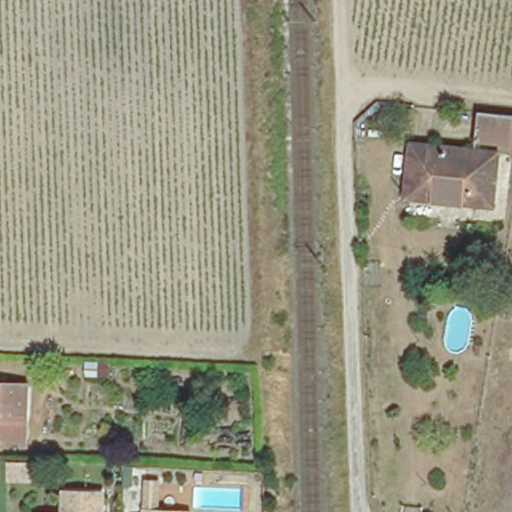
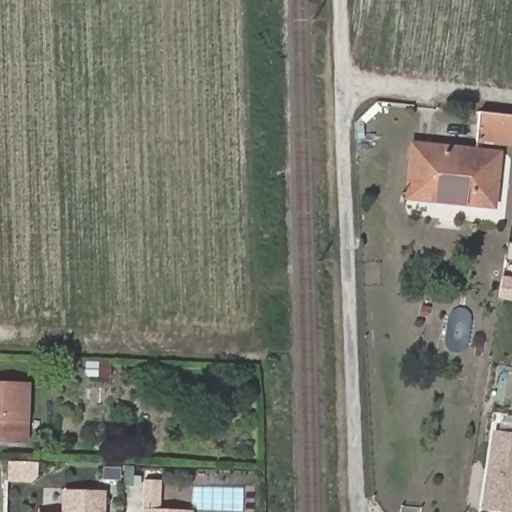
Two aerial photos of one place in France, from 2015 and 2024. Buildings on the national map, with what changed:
unchanged [(479,107),(512,111),(512,139),(476,134),(479,107)]
unchanged [(409,140),(495,147),(489,201),(404,192),(409,140)]
new [(512,280),(512,300),(500,298),(503,278),(512,280)]
unchanged [(87,376),(87,362),(113,363),(113,377),(87,376)]
unchanged [(29,384),(26,441),(0,439),(0,383),(29,384)]
new [(493,429),(512,432),(512,512),(510,512),(482,508),(493,429)]
unchanged [(7,466),(35,467),(34,477),(27,483),(6,483),(7,466)]
unchanged [(70,491),(108,491),(107,512),(70,512),(70,491)]
unchanged [(145,503),(190,505),(190,512),(144,512),(145,503)]

